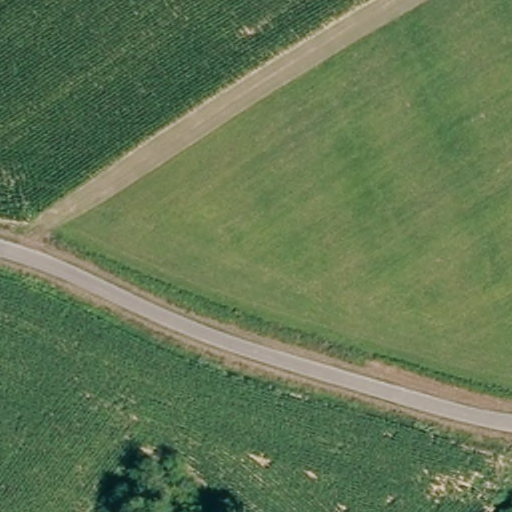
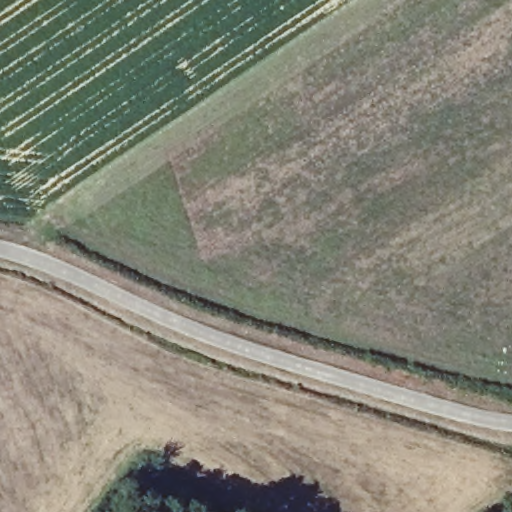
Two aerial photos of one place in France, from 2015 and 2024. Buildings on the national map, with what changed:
[]

